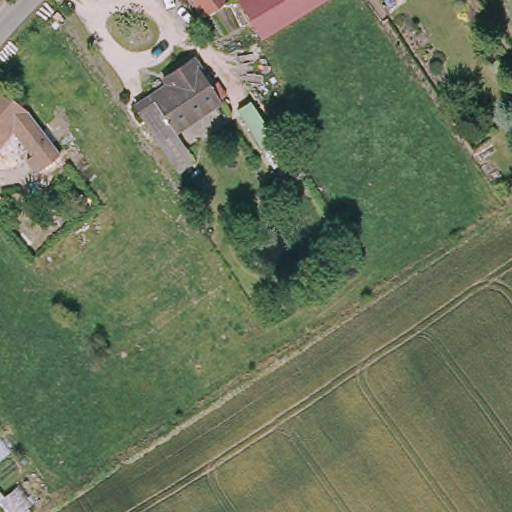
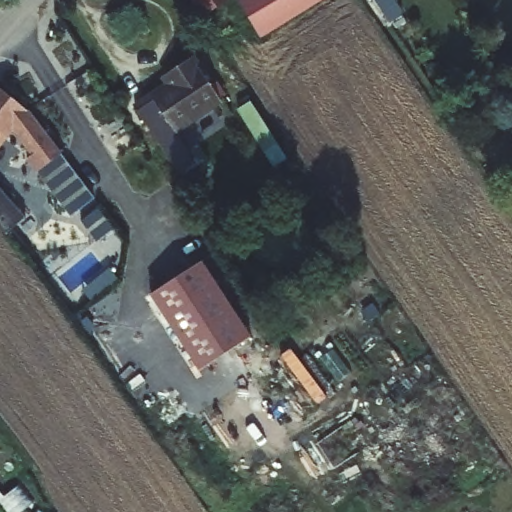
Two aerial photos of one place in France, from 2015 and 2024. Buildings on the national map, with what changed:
unchanged [(225,0),(226,1),(205,14),(196,0),(225,0)]
unchanged [(235,0),(259,0),(259,1),(260,0),(320,0),(324,6),(260,44),(240,12),(242,11),(235,0)]
unchanged [(136,112),(170,90),(164,81),(194,62),(224,107),(177,137),(196,165),(179,176),(136,112)]
unchanged [(27,165),(33,161),(13,134),(0,150),(0,92),(27,115),(28,114),(39,128),(62,157),(35,176),(27,165)]
unchanged [(269,152),(240,112),(255,103),(282,144),(269,152)]
new [(5,234),(0,228),(0,189),(26,217),(5,234)]
unchanged [(88,197),(84,212),(74,209),(79,194),(88,197)]
new [(202,262),(250,338),(201,372),(152,294),(202,262)]

